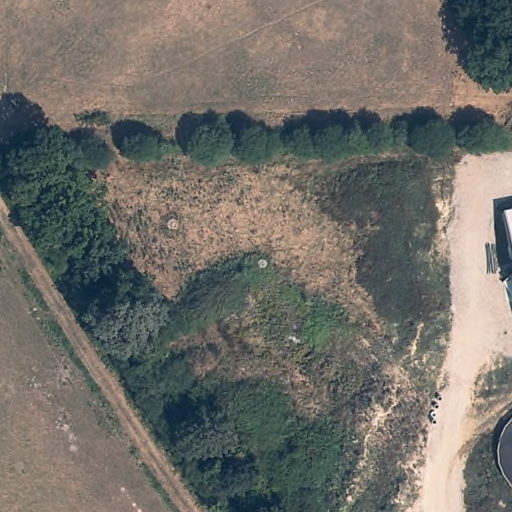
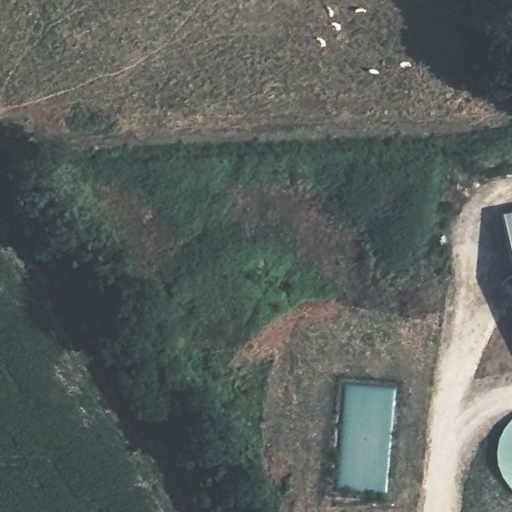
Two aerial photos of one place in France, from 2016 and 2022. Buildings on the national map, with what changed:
unchanged [(512,210),(512,264),(502,211),(512,210)]
unchanged [(501,477),(495,462),(493,447),(500,430),(512,417),(512,489),(506,484),(501,477)]

